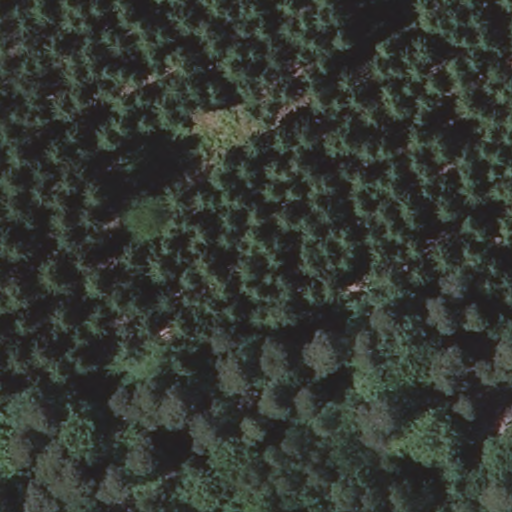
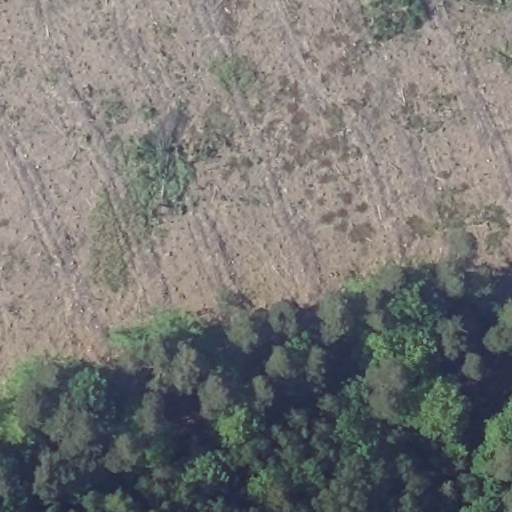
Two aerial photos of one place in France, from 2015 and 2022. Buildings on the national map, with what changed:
[]

